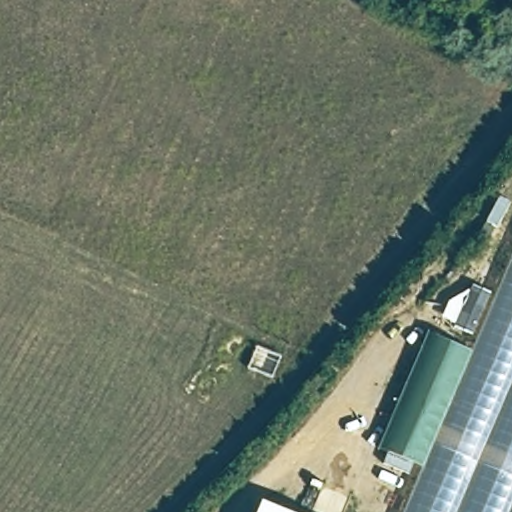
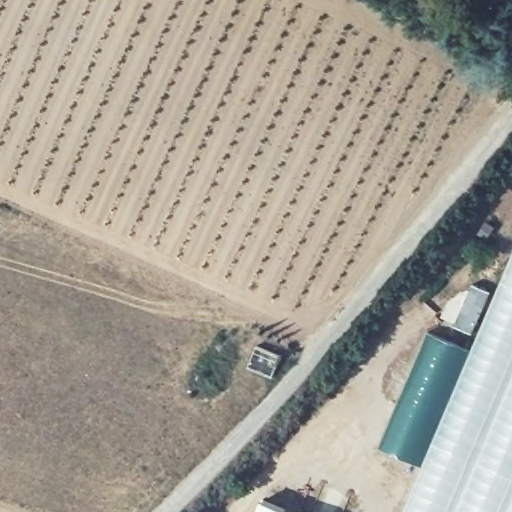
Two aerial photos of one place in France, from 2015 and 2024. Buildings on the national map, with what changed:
unchanged [(473,349),(512,254),(512,512),(406,512),(425,466),(473,349)]
unchanged [(425,466),(377,446),(426,331),(473,349),(425,466)]
unchanged [(256,346),(285,361),(275,381),(247,371),(256,346)]
unchanged [(254,512),(260,498),(293,512),(254,512)]

